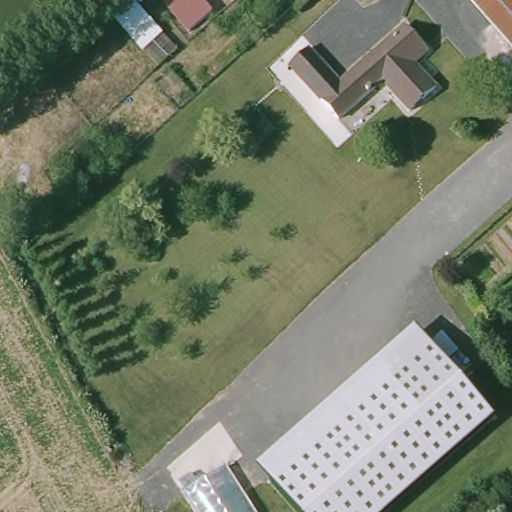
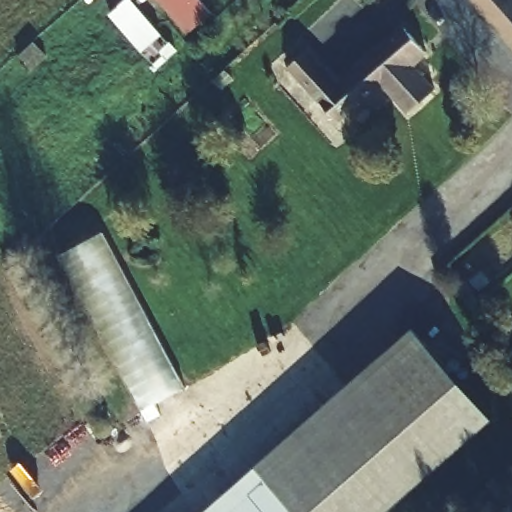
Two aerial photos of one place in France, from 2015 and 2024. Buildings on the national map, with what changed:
new [(155,42),(162,52),(147,61),(110,15),(127,0),(133,0),(162,36),(155,42)]
unchanged [(186,34),(156,0),(203,0),(212,11),(186,34)]
unchanged [(464,2),(466,0),(510,0),(512,2),(512,52),(464,2)]
unchanged [(405,72),(410,77),(387,97),(377,86),(336,125),(285,71),(304,55),(336,89),(394,35),(417,60),(405,72)]
new [(92,234),(179,382),(137,407),(50,258),(92,234)]
unchanged [(492,418),(388,512),(214,512),(413,328),(492,418)]

